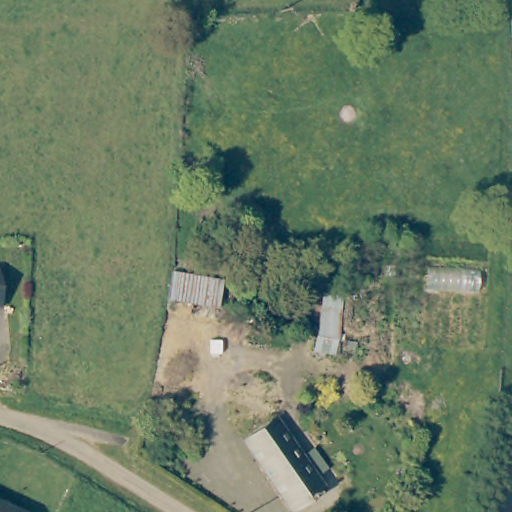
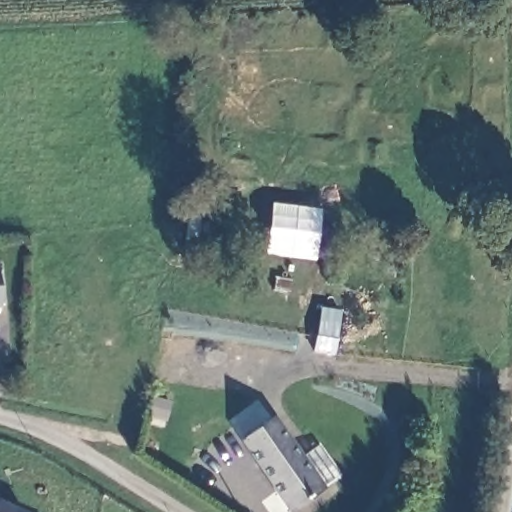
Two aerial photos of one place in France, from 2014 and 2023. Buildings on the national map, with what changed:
new [(265,257),(272,206),(321,211),(315,262),(265,257)]
unchanged [(343,297),(337,357),(317,353),(320,338),(322,338),(327,296),(330,297),(343,297)]
unchanged [(274,417),(321,487),(291,507),(244,437),(274,417)]
unchanged [(17,506),(20,509),(20,512),(0,512),(0,498),(17,506)]

